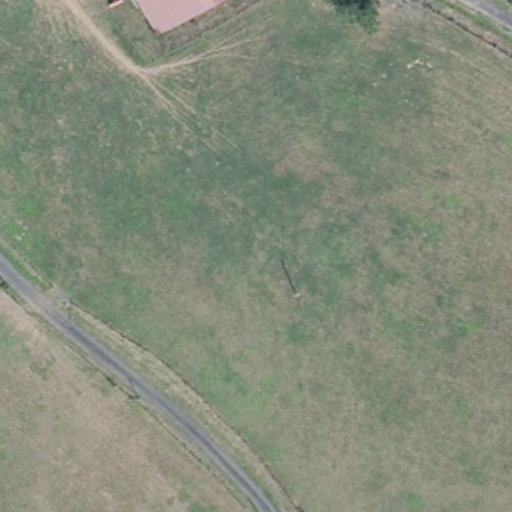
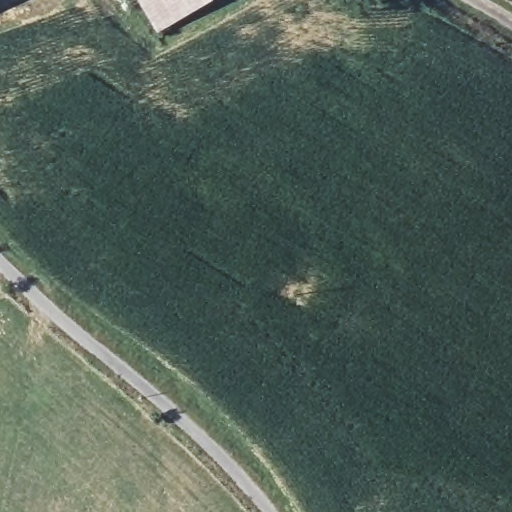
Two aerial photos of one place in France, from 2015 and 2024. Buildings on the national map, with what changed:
unchanged [(138,0),(217,0),(158,34),(138,0)]

